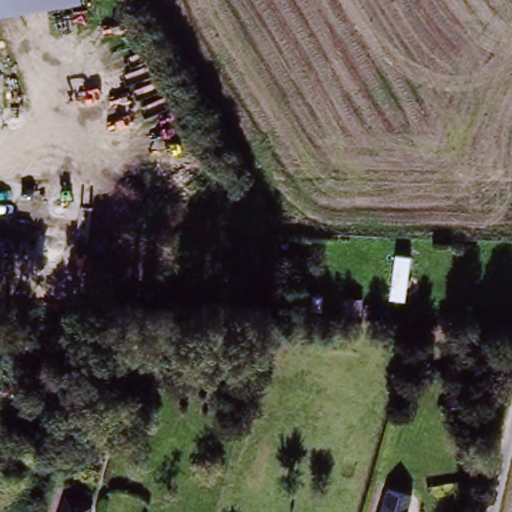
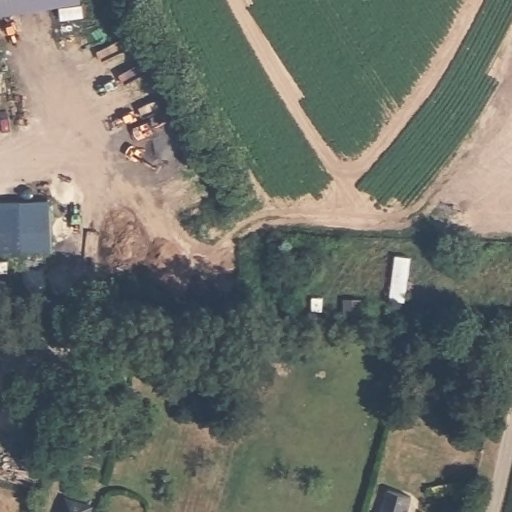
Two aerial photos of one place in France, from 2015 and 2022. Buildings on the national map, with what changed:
unchanged [(0,12),(0,0),(61,0),(0,12)]
new [(50,201),(52,252),(0,254),(0,204),(50,201)]
unchanged [(387,303),(390,251),(412,252),(407,302),(387,303)]
unchanged [(415,494),(410,512),(384,512),(392,487),(415,494)]
unchanged [(85,511),(85,512),(55,512),(58,502),(85,511)]

